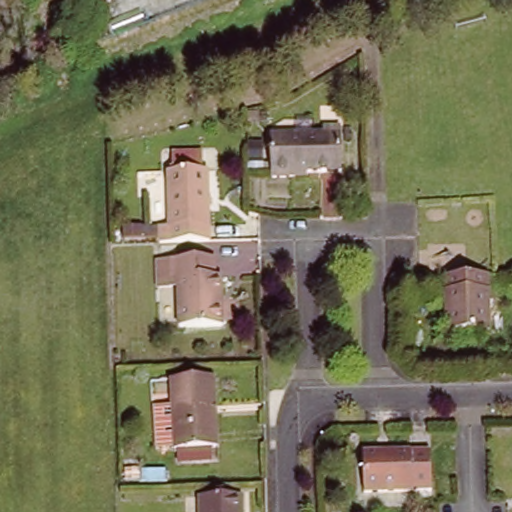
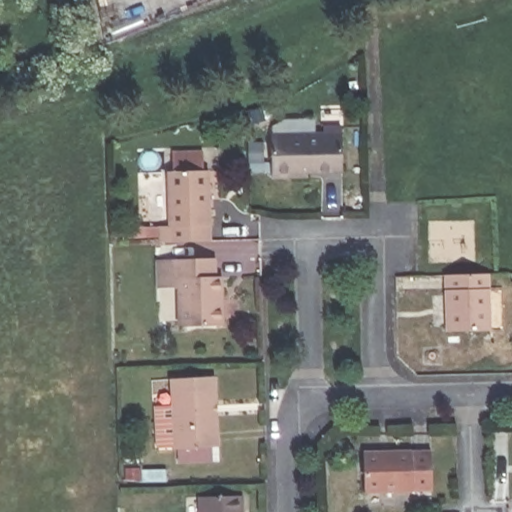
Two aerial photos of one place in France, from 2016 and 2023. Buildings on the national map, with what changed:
unchanged [(345,132),(346,175),(304,176),(304,180),(268,181),(267,137),(325,136),(332,132),(345,132)]
unchanged [(160,244),(160,226),(170,226),(169,172),(174,172),(174,154),(204,154),(204,172),(209,172),(210,244),(160,244)]
unchanged [(210,319),(167,320),(166,270),(160,271),(160,253),(202,252),(203,270),(210,270),(210,319)]
unchanged [(489,277),(490,336),(445,336),(444,277),(489,277)]
unchanged [(169,367),(212,366),(213,439),(170,439),(169,367)]
unchanged [(353,447),(419,447),(419,489),(353,489),(353,447)]
unchanged [(244,500),(244,512),(204,512),(204,501),(244,500)]

